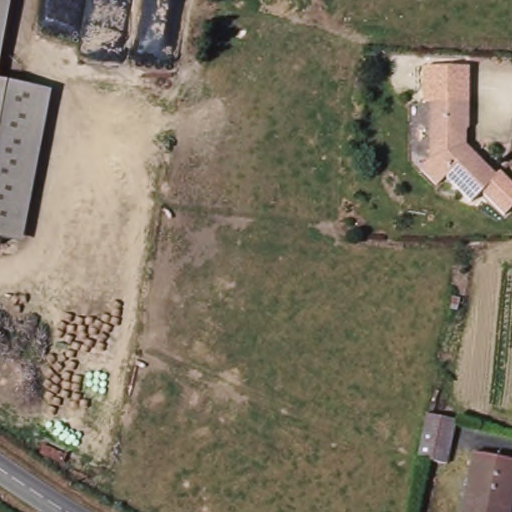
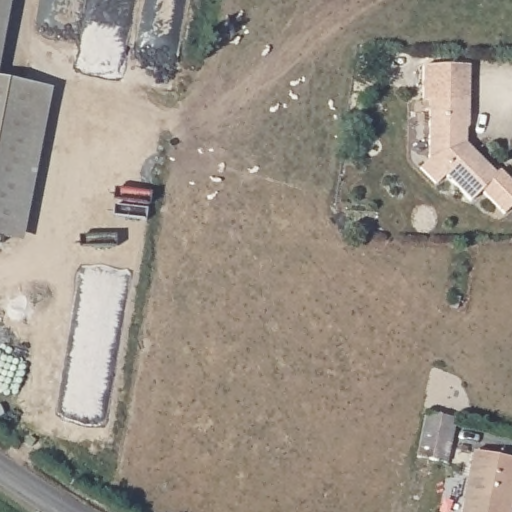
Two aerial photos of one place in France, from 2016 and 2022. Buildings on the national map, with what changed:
unchanged [(0,0),(12,0),(0,64),(0,0)]
unchanged [(428,95),(432,61),(477,67),(472,102),(435,96),(428,95)]
unchanged [(0,241),(0,82),(51,92),(22,246),(0,241)]
unchanged [(461,133),(461,140),(491,180),(462,202),(440,172),(430,180),(416,162),(426,154),(435,96),(472,102),(469,128),(461,133)]
unchanged [(506,215),(480,189),(491,180),(501,172),(512,182),(512,209),(506,215)]
unchanged [(443,465),(417,459),(424,417),(450,421),(443,465)]
unchanged [(468,451),(512,458),(512,473),(508,512),(456,512),(468,451)]

